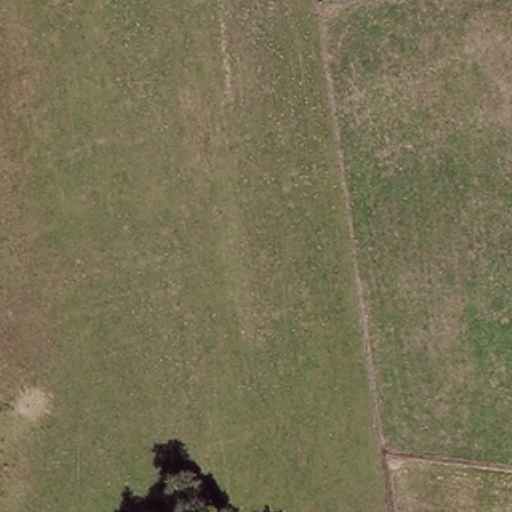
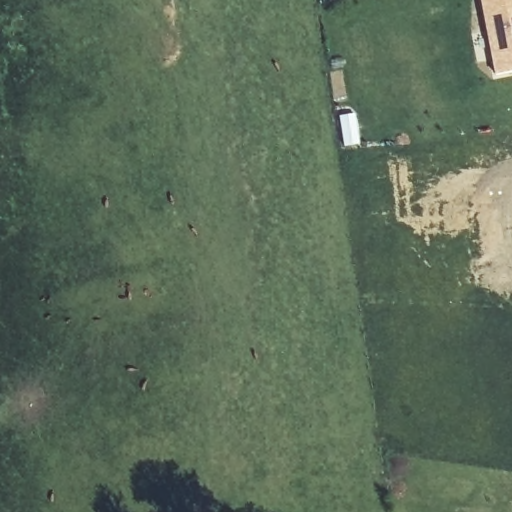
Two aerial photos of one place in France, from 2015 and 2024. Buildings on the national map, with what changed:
new [(501,75),(486,0),(512,0),(512,72),(501,75)]

